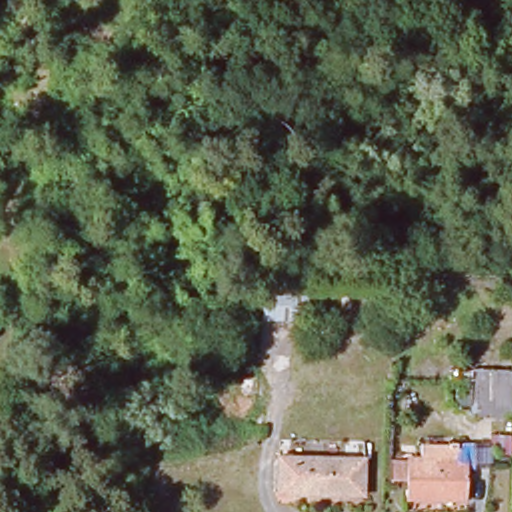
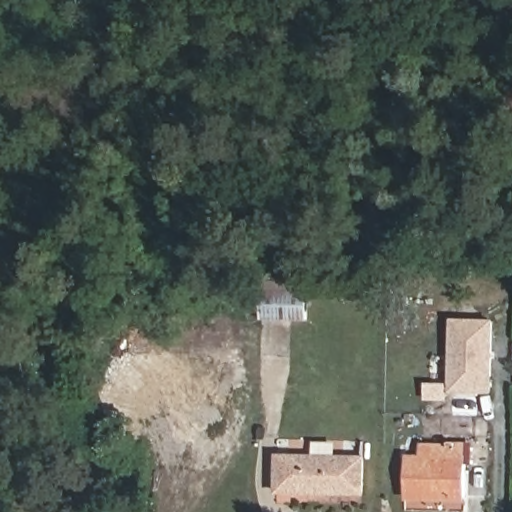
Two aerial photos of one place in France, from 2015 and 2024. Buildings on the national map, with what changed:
unchanged [(291,291),(307,292),(305,322),(260,322),(260,274),(290,277),(291,291)]
new [(494,320),(493,394),(449,393),(451,319),(494,320)]
demolished [(500,418),(479,418),(480,383),(481,368),(502,369),(501,383),(500,418)]
unchanged [(404,469),(416,469),(417,456),(462,457),(461,470),(460,506),(403,504),(404,469)]
unchanged [(365,463),(363,498),(279,495),(280,460),(365,463)]

